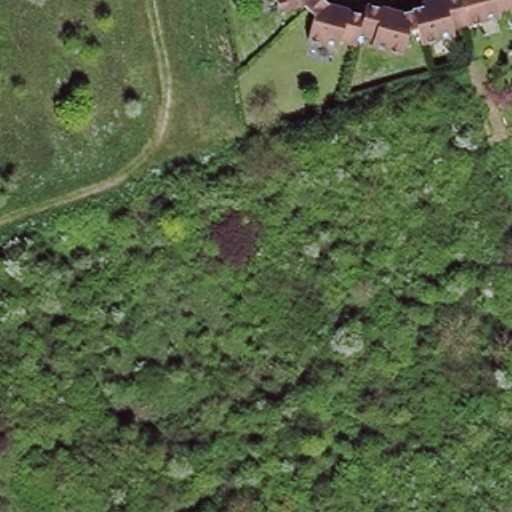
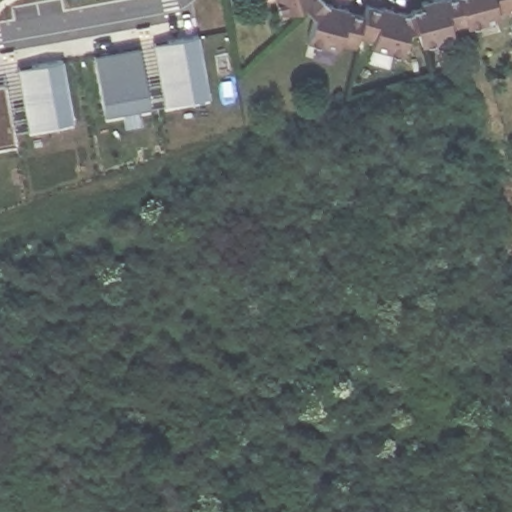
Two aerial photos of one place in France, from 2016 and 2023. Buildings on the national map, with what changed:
unchanged [(414,34),(406,36),(400,61),(369,54),(371,47),(344,40),(341,50),(310,43),(316,18),(305,8),(281,15),(276,0),(320,0),(327,6),(347,12),(347,13),(362,18),(365,7),(380,11),(380,9),(401,15),(410,12),(410,10),(420,8),(419,5),(438,0),(442,0),(444,0),(512,0),(512,11),(496,15),(498,21),(465,30),(465,29),(450,33),(452,41),(419,50),(414,34)]
new [(166,105),(155,42),(202,33),(213,95),(166,105)]
new [(155,105),(107,114),(96,54),(142,46),(155,105)]
new [(30,129),(19,68),(65,58),(77,119),(30,129)]
new [(0,145),(0,83),(7,82),(19,142),(0,145)]

